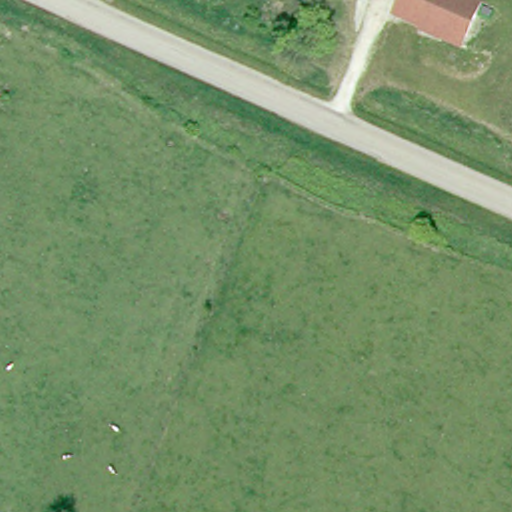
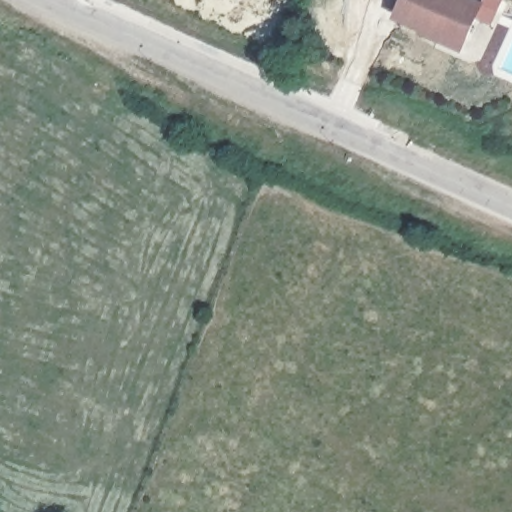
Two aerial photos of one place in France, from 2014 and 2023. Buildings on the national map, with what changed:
unchanged [(394,20),(401,0),(481,0),(486,2),(464,51),(394,20)]

